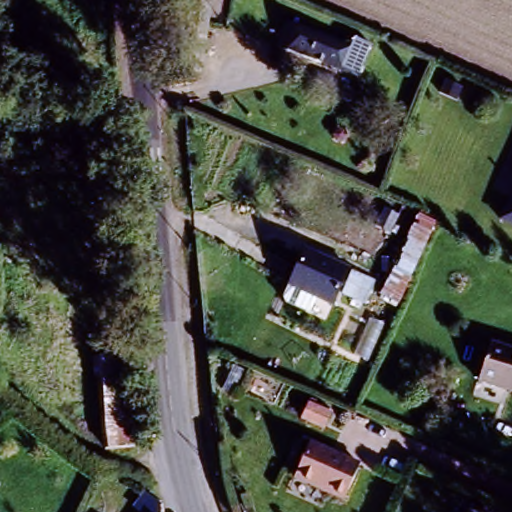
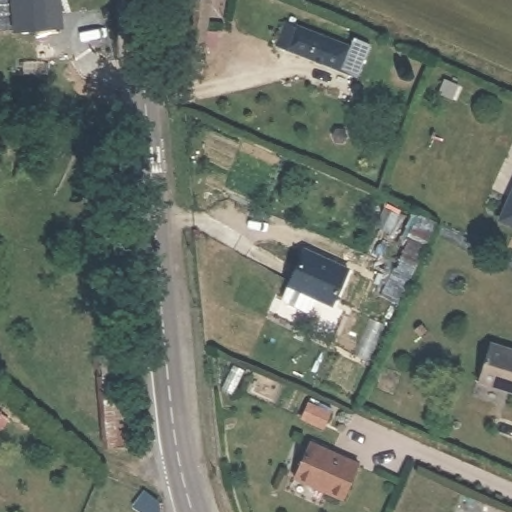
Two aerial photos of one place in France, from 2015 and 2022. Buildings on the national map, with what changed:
new [(64,28),(14,32),(12,0),(62,0),(64,28)]
unchanged [(186,0),(202,0),(200,49),(181,49),(186,0)]
unchanged [(348,49),(352,37),(371,45),(357,79),(270,47),(280,19),(348,49)]
demolished [(512,95),(512,116),(498,110),(507,92),(512,95)]
unchanged [(497,223),(512,189),(512,230),(497,223)]
unchanged [(347,273),(331,306),(283,283),(300,250),(347,273)]
unchanged [(473,377),(491,339),(512,349),(512,395),(473,377)]
unchanged [(111,446),(105,371),(104,356),(130,354),(131,368),(137,445),(111,446)]
unchanged [(288,475),(302,441),(360,465),(347,498),(288,475)]
unchanged [(167,510),(166,512),(136,512),(145,496),(167,510)]

